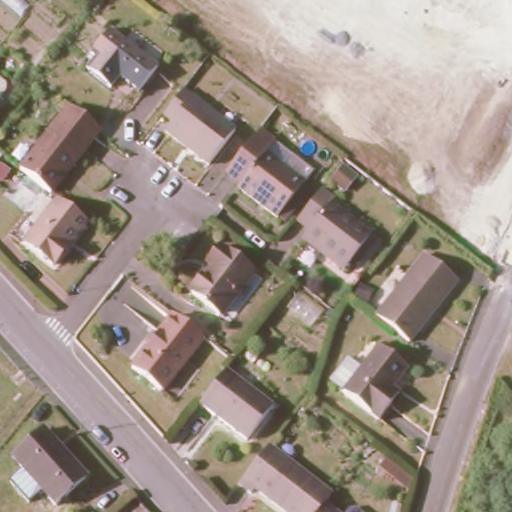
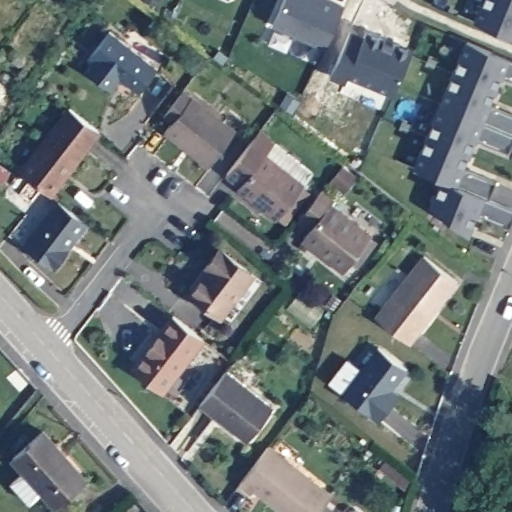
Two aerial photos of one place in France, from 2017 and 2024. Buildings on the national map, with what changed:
new [(274,0),(335,0),(344,4),(325,46),(265,19),(274,0)]
new [(512,36),(472,19),(480,0),(512,0),(512,36)]
new [(365,34),(367,29),(385,36),(384,40),(395,44),(395,41),(414,48),(395,93),(348,75),(345,82),(330,77),(350,30),(365,34)]
unchanged [(109,31),(160,70),(142,96),(122,82),(114,91),(87,71),(95,62),(89,56),(109,31)]
new [(512,77),(499,72),(488,101),(512,112),(512,139),(508,150),(474,136),(462,166),(495,180),(488,196),(512,207),(512,217),(509,225),(476,213),(467,234),(429,206),(440,177),(412,165),(465,38),(512,58),(512,77)]
unchanged [(8,85),(10,95),(0,107),(0,79),(8,85)]
unchanged [(234,128),(209,163),(162,128),(170,118),(162,111),(182,86),(234,128)]
unchanged [(49,198),(17,173),(69,105),(100,130),(49,198)]
unchanged [(290,222),(281,215),(242,184),(245,181),(231,170),(263,129),(279,141),(314,170),(307,180),(317,188),(290,222)]
unchanged [(362,268),(354,262),(347,270),(326,252),(322,257),(300,238),(305,229),(307,228),(298,221),(325,188),(338,198),(334,203),(374,234),(369,241),(377,248),(362,268)]
unchanged [(23,244),(57,200),(81,218),(89,224),(69,250),(54,268),(23,244)]
unchanged [(252,276),(221,319),(191,296),(209,273),(205,269),(220,250),(252,276)]
unchanged [(427,255),(460,282),(415,343),(380,316),(427,255)]
unchanged [(205,342),(164,396),(132,368),(145,350),(144,346),(146,342),(149,338),(157,334),(170,315),(205,342)]
unchanged [(395,402),(381,420),(343,390),(330,380),(349,356),(361,366),(379,344),(407,366),(392,385),(402,393),(395,402)]
unchanged [(272,409),(247,443),(200,405),(225,371),(272,409)]
unchanged [(89,481),(59,508),(15,459),(45,432),(89,481)]
unchanged [(252,497),(241,488),(270,450),(332,497),(324,507),(320,512),(281,512),(257,493),(252,497)]
unchanged [(320,512),(324,507),(331,512),(320,512)]

